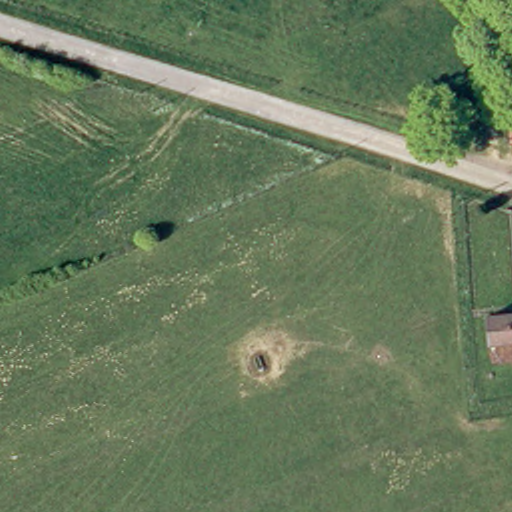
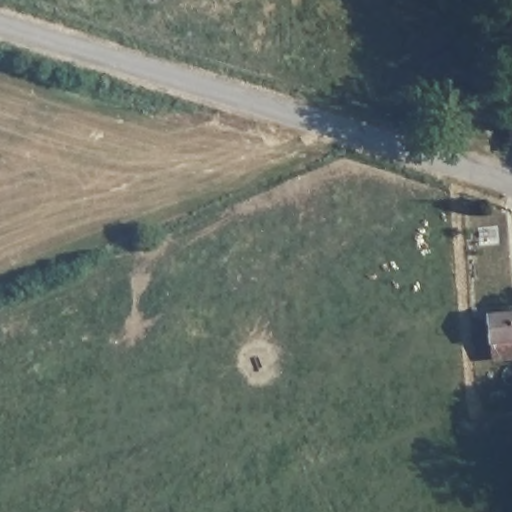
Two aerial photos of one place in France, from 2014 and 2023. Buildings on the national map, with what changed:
unchanged [(510,132),(511,104),(512,104),(512,132),(510,132)]
unchanged [(491,360),(490,345),(485,317),(512,314),(512,358),(491,360)]

